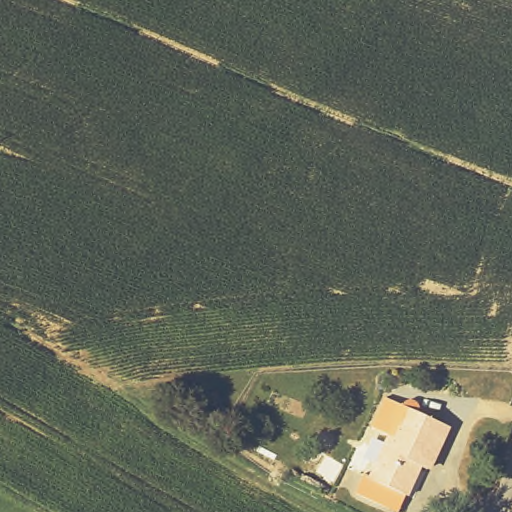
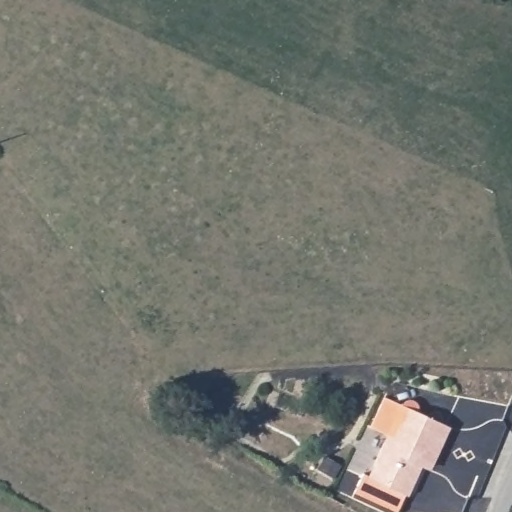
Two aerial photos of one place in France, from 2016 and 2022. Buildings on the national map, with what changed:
unchanged [(365,482),(385,436),(369,429),(382,401),(399,409),(400,406),(404,402),(409,400),(414,401),(419,405),(419,411),(417,416),(445,430),(426,472),(421,470),(408,498),(405,497),(399,512),(390,512),(352,497),(359,479),(365,482)]

